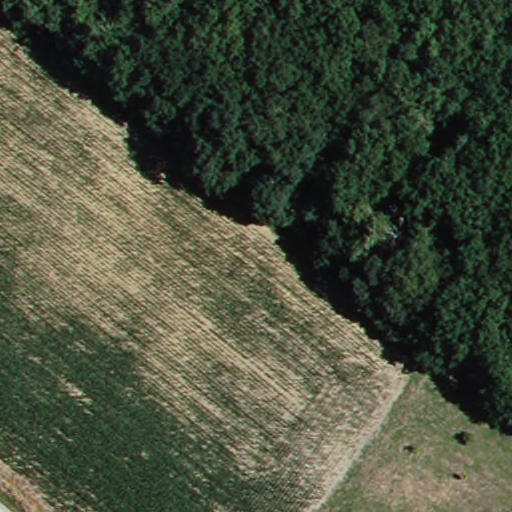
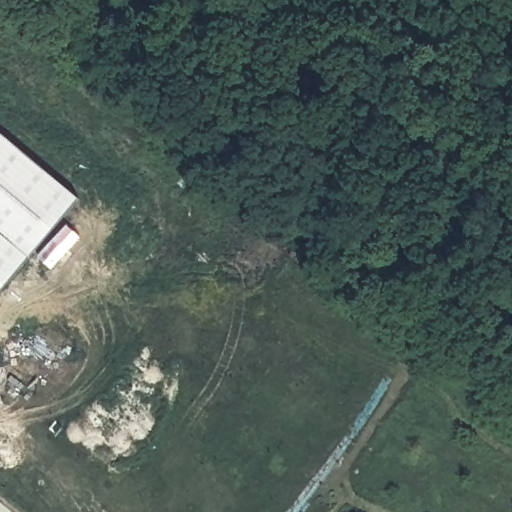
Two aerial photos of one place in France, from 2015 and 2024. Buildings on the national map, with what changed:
new [(0,289),(0,128),(80,195),(0,289)]

